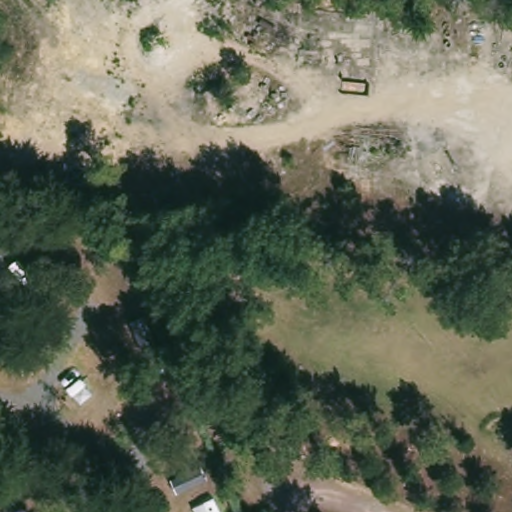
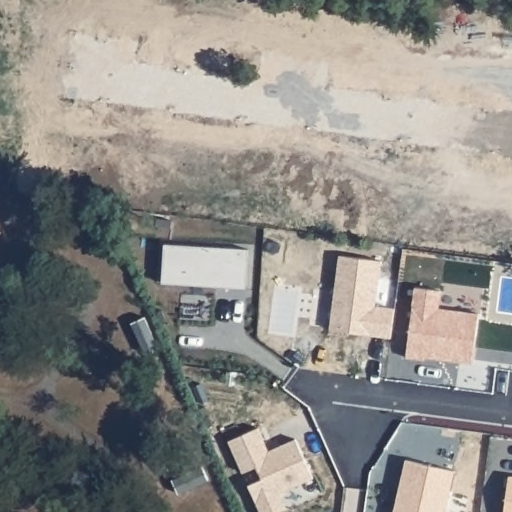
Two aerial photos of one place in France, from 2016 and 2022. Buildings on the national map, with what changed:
new [(164,245),(248,250),(246,288),(162,284),(164,245)]
new [(329,330),(339,255),(381,260),(375,306),(394,309),(391,337),(371,335),(352,333),(329,330)]
new [(415,287),(440,290),(437,309),(478,314),(472,363),(424,357),(423,359),(406,357),(415,287)]
new [(268,454),(295,442),(312,481),(280,496),(286,511),(282,512),(259,512),(248,487),(262,482),(257,469),(242,475),(229,443),(257,431),(268,454)]
new [(455,471),(445,512),(392,512),(405,459),(455,471)]
new [(512,477),(512,512),(503,512),(508,477),(512,477)]

